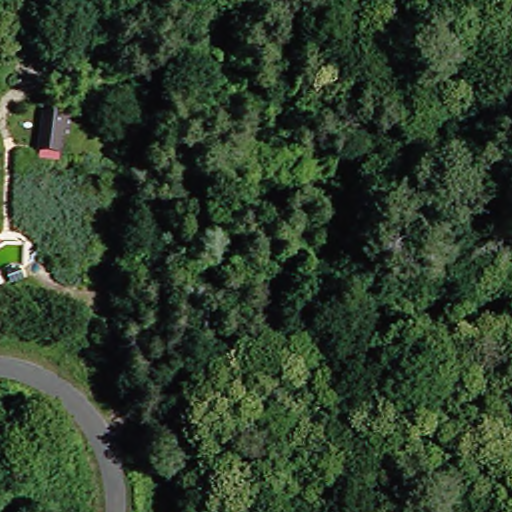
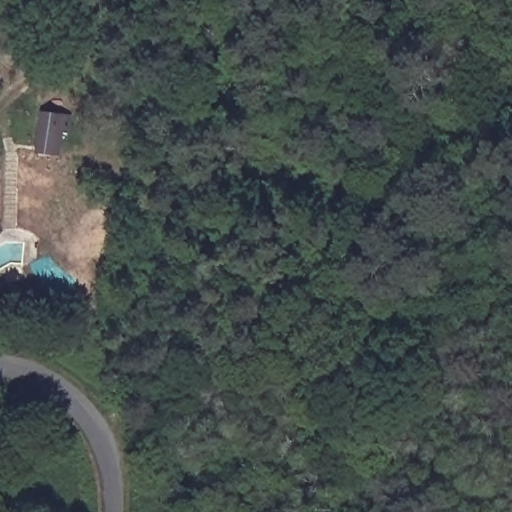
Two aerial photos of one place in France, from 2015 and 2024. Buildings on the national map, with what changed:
unchanged [(34,114),(61,115),(59,156),(32,155),(34,114)]

